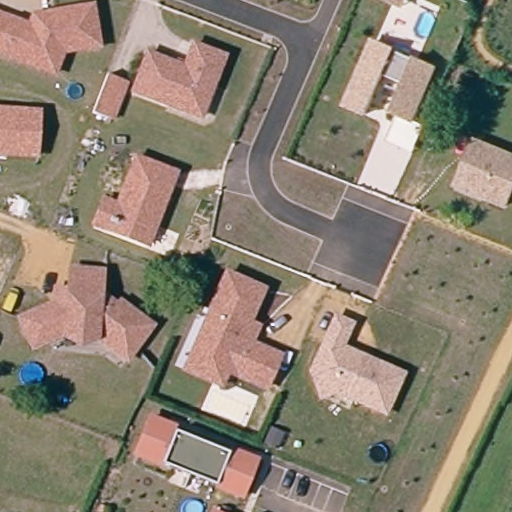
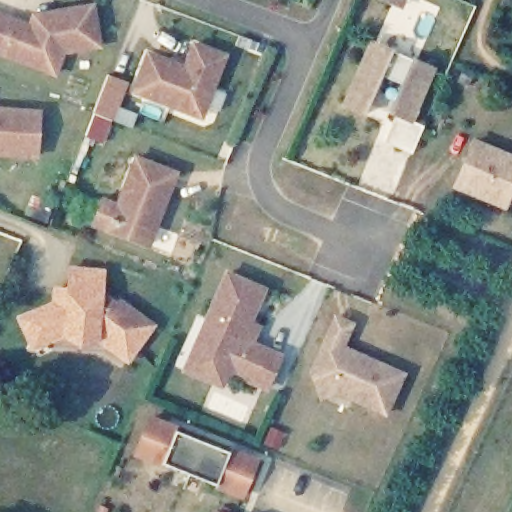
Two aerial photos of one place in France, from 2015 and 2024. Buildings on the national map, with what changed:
unchanged [(402,9),(379,0),(406,0),(402,9)]
unchanged [(0,19),(10,23),(27,29),(31,19),(53,15),(90,9),(97,49),(61,55),(52,77),(19,65),(0,57),(0,19)]
unchanged [(370,39),(435,68),(410,121),(422,130),(411,154),(386,142),(395,118),(388,114),(401,81),(385,75),(364,117),(340,107),(370,39)]
unchanged [(136,90),(150,52),(179,63),(181,59),(190,62),(196,43),(227,55),(207,109),(204,116),(171,103),(136,90)]
unchanged [(129,82),(115,119),(94,111),(107,74),(129,82)]
unchanged [(458,90),(463,79),(474,84),(469,94),(458,90)]
unchanged [(39,159),(0,158),(0,106),(41,109),(39,159)]
unchanged [(456,180),(473,143),(512,161),(512,188),(502,209),(480,199),(453,187),(456,180)]
unchanged [(100,199),(115,198),(135,154),(176,170),(147,248),(90,228),(100,199)]
unchanged [(28,341),(17,317),(51,301),(51,298),(53,287),(65,288),(67,267),(100,270),(98,291),(115,304),(117,300),(150,324),(125,358),(93,335),(61,332),(46,338),(30,346),(28,341)]
unchanged [(262,389),(249,383),(224,371),(217,385),(181,368),(192,345),(226,273),(262,290),(247,323),(256,327),(250,339),(249,343),(264,351),(277,358),(262,389)]
unchanged [(317,395),(308,369),(323,338),(334,315),(350,322),(339,345),(400,374),(381,413),(350,398),(332,390),(317,395)]
unchanged [(146,415),(178,426),(175,432),(227,453),(229,447),(258,458),(242,496),(130,455),(146,415)]
unchanged [(216,512),(213,512),(214,511),(216,512)]

